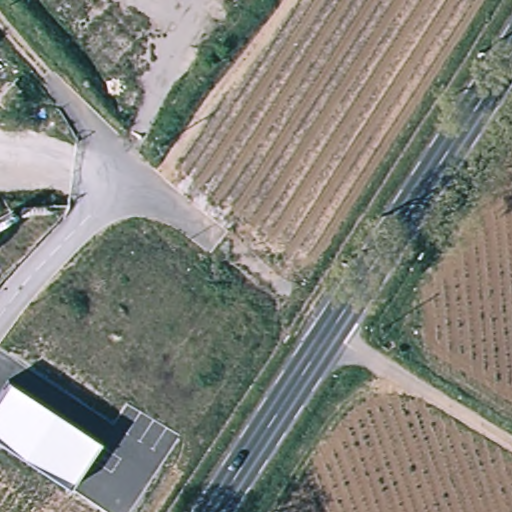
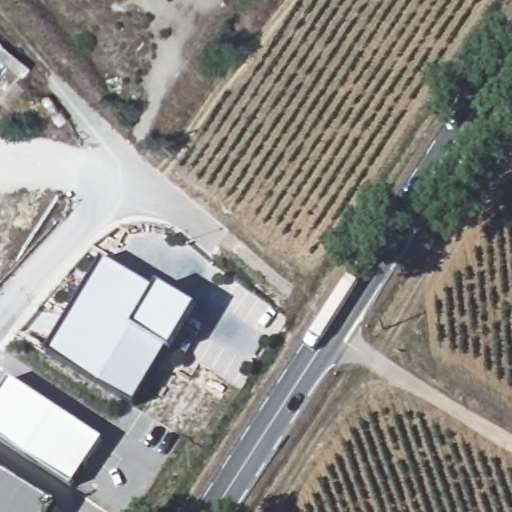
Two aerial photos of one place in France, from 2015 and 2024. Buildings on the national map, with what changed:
new [(157,292),(160,288),(197,311),(171,354),(165,351),(132,406),(44,352),(101,261),(157,292)]
unchanged [(102,443),(72,488),(0,442),(0,395),(10,381),(102,443)]
new [(57,507),(53,512),(0,512),(0,472),(57,507)]

